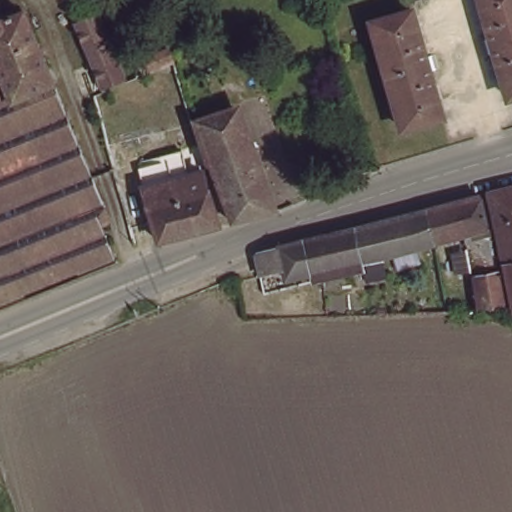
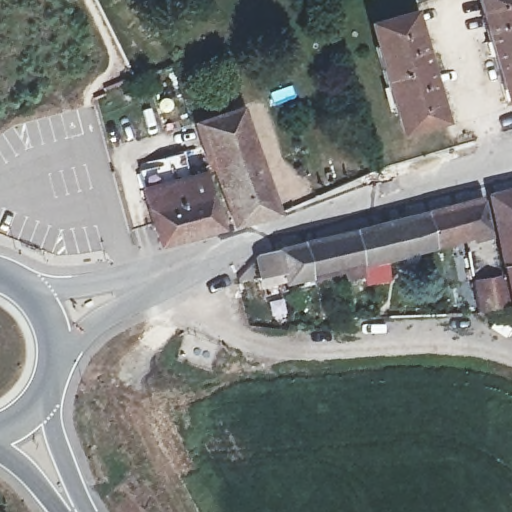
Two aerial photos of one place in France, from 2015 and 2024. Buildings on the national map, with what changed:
unchanged [(481,0),(512,0),(512,93),(509,94),(481,0)]
unchanged [(425,52),(430,51),(435,68),(430,70),(442,112),(405,123),(374,19),(412,7),(425,52)]
demolished [(2,18),(24,10),(54,80),(13,97),(12,97),(0,69),(0,14),(2,18)]
demolished [(125,81),(107,88),(77,24),(101,15),(125,81)]
unchanged [(287,32),(254,44),(250,31),(282,19),(287,32)]
unchanged [(147,77),(142,63),(169,53),(174,67),(147,77)]
demolished [(12,97),(13,97),(54,80),(84,152),(94,175),(110,217),(102,220),(118,258),(0,308),(0,69),(12,97)]
unchanged [(263,214),(238,220),(217,159),(214,161),(211,151),(200,116),(239,102),(252,142),(260,141),(282,208),(263,214)]
unchanged [(135,157),(179,146),(185,171),(159,179),(155,170),(140,174),(135,157)]
unchanged [(202,167),(221,222),(160,237),(140,174),(155,170),(159,179),(185,171),(202,167)]
unchanged [(512,182),(512,207),(497,211),(491,188),(512,182)]
unchanged [(472,193),(474,193),(482,191),(490,225),(492,225),(500,269),(503,270),(510,304),(504,304),(499,304),(480,305),(477,277),(473,262),(469,243),(477,241),(475,227),(436,239),(430,206),(472,193)]
unchanged [(436,239),(401,249),(362,257),(357,229),(355,225),(374,221),(417,209),(430,206),(436,239)]
unchanged [(497,211),(512,207),(512,256),(507,257),(497,211)]
unchanged [(305,237),(312,235),(355,225),(357,229),(362,257),(311,269),(305,237)]
unchanged [(287,275),(284,266),(262,270),(256,250),(299,237),(305,237),(311,269),(287,275)]
unchanged [(512,282),(507,257),(512,256),(512,282)]

